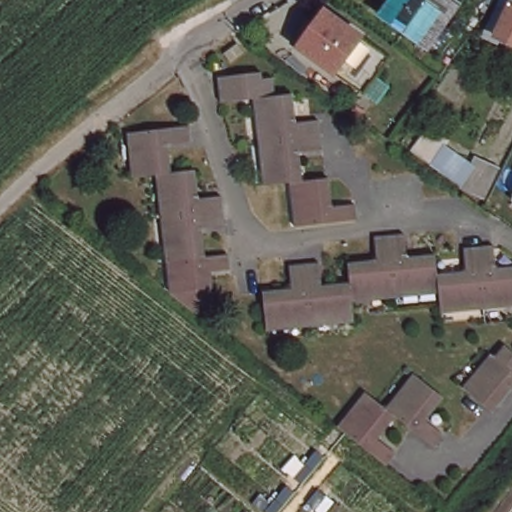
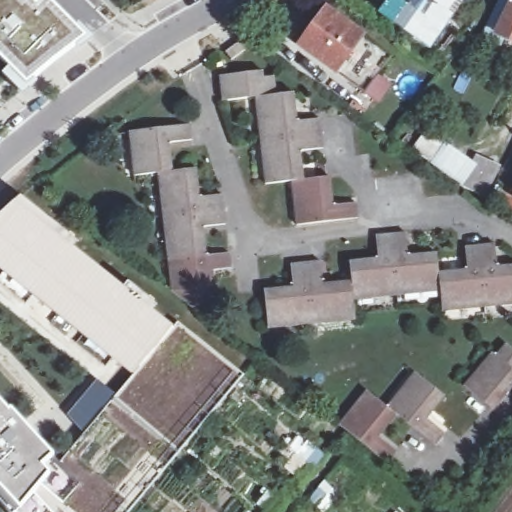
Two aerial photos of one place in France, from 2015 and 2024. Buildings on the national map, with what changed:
new [(89,40),(46,72),(29,87),(0,59),(0,0),(49,0),(89,40)]
unchanged [(460,4),(431,46),(408,30),(385,14),(394,0),(455,0),(460,4)]
unchanged [(501,45),(486,37),(505,0),(511,0),(512,0),(512,42),(505,39),(501,45)]
unchanged [(320,12),(325,15),(328,11),(393,59),(367,94),(298,44),(320,12)]
unchanged [(226,95),(226,71),(267,69),(269,77),(281,77),(282,92),(297,91),(300,119),(323,117),(324,132),(263,136),(260,92),(226,95)]
unchanged [(131,176),(126,132),(186,125),(189,137),(167,141),(170,171),(155,172),(131,176)]
unchanged [(499,168),(484,199),(467,190),(467,188),(434,166),(417,154),(435,131),(454,146),(452,149),(478,167),(482,159),(499,168)]
unchanged [(326,146),(301,149),(303,179),(295,179),(266,181),(263,136),(324,132),(326,146)]
unchanged [(194,169),(197,194),(221,192),(223,207),(161,215),(155,172),(170,171),(194,169)]
unchanged [(295,179),(303,179),(327,176),(329,204),(355,202),(356,217),(298,222),(295,179)]
new [(151,311),(174,329),(140,370),(139,369),(0,258),(0,218),(22,198),(50,221),(76,242),(71,247),(125,290),(129,285),(155,306),(151,311)]
unchanged [(223,207),(225,222),(201,226),(204,253),(170,257),(166,257),(161,215),(223,207)]
unchanged [(444,291),(400,295),(395,234),(408,233),(411,255),(440,253),(442,271),(444,291)]
unchanged [(400,295),(357,299),(356,281),(354,262),(380,259),(378,236),(395,234),(400,295)]
unchanged [(497,244),(501,266),(512,265),(512,304),(490,306),(484,246),(497,244)]
unchanged [(442,271),(471,270),(470,247),(484,246),(490,306),(445,311),(444,291),(442,271)]
unchanged [(204,253),(228,250),(229,265),(206,267),(208,291),(193,310),(168,290),(173,284),(170,257),(204,253)]
new [(139,369),(135,375),(0,267),(0,258),(139,369)]
unchanged [(357,299),(358,317),(316,322),(311,261),(325,260),(327,283),(356,281),(357,299)]
unchanged [(316,322),(270,326),(267,287),(295,286),(294,262),(311,261),(316,322)]
new [(131,512),(20,512),(60,465),(85,435),(117,397),(140,370),(179,324),(245,377),(131,512)]
unchanged [(495,352),(504,343),(512,350),(512,382),(490,408),(464,387),(494,352),(495,352)]
unchanged [(415,372),(440,391),(421,413),(441,428),(430,440),(392,409),(388,406),(415,372)]
new [(117,397),(85,435),(69,417),(98,382),(117,397)]
unchanged [(392,409),(374,432),(393,447),(383,460),(336,422),(365,387),(388,406),(392,409)]
new [(10,414),(11,412),(60,465),(20,512),(7,512),(0,505),(0,403),(10,414)]
new [(268,512),(244,512),(258,486),(280,497),(268,512)]

